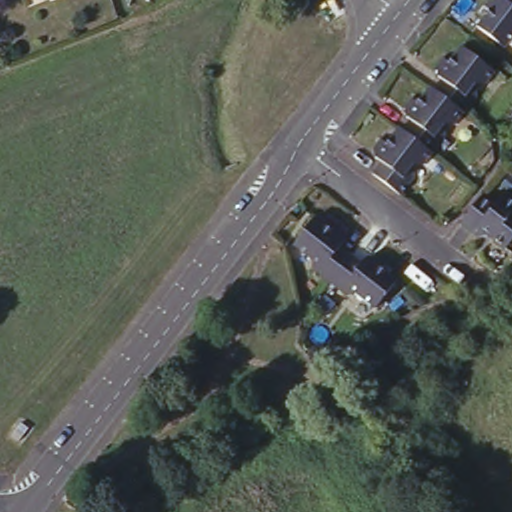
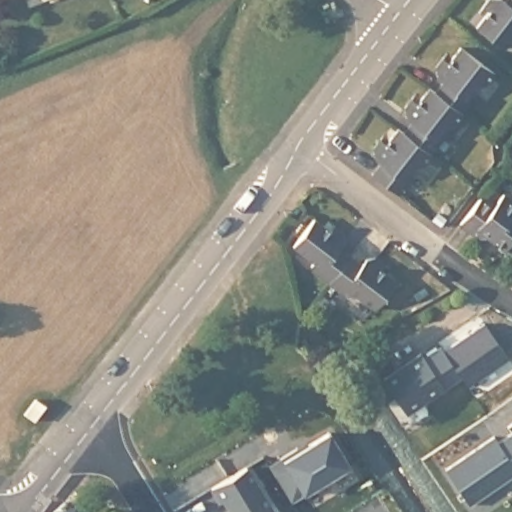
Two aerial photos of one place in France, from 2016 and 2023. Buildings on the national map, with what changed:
unchanged [(43,0),(46,0),(44,1),(43,0)]
unchanged [(477,5),(480,0),(499,0),(512,0),(512,29),(498,48),(470,25),(482,9),(477,5)]
unchanged [(368,161),(362,156),(359,146),(367,136),(372,141),(386,125),(392,131),(400,121),(395,117),(392,106),(400,97),(405,101),(418,85),(425,90),(432,79),(427,74),(425,66),(432,56),(437,60),(449,46),(482,73),(472,86),(464,86),(461,89),(465,92),(464,96),(442,124),(433,125),(430,129),(434,132),(433,136),(412,164),(402,164),(398,168),(403,173),(402,176),(387,194),(360,172),(368,161)]
unchanged [(502,190),(512,198),(512,207),(512,234),(503,245),(487,232),(483,235),(476,235),(458,221),(480,192),(492,202),(502,190)]
unchanged [(317,213),(333,225),(338,220),(346,225),(346,237),(342,241),(363,257),(367,253),(379,252),(386,257),(382,263),(397,276),(376,303),(355,286),(352,289),(347,289),(316,265),(315,261),(317,258),(296,241),(317,213)]
new [(482,323),(506,359),(465,386),(441,351),(482,323)]
new [(404,413),(381,379),(418,354),(422,358),(438,347),(458,376),(404,413)]
new [(39,398),(50,405),(37,422),(25,414),(39,398)]
unchanged [(25,423),(31,429),(21,442),(14,435),(25,423)]
new [(512,474),(467,504),(443,468),(491,436),(496,442),(508,433),(512,438),(512,474)]
new [(292,453),(295,456),(328,436),(347,465),(288,502),(267,468),(292,453)]
new [(244,466),(270,510),(265,512),(228,512),(221,500),(217,502),(208,488),(244,466)]

